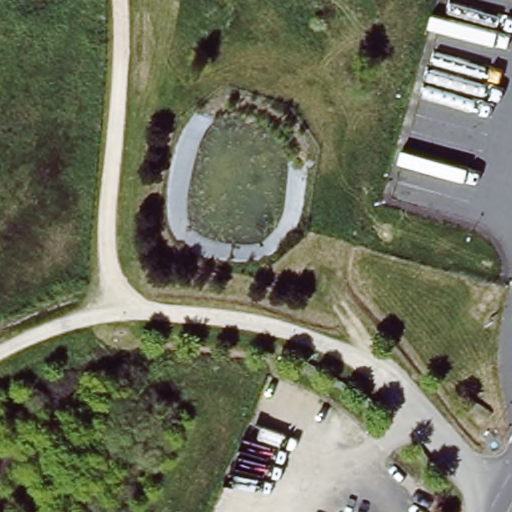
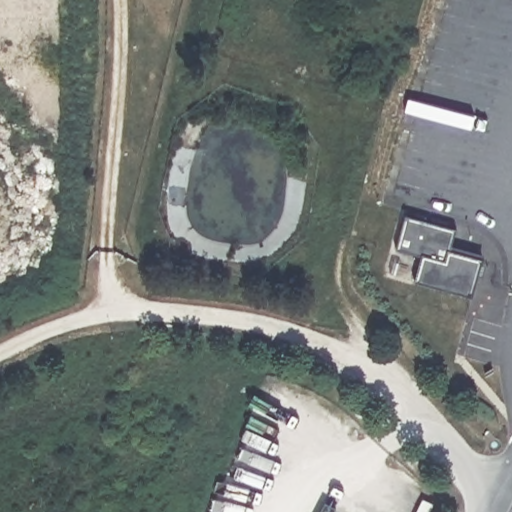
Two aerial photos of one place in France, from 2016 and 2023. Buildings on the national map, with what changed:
new [(410,221),(455,234),(450,254),(481,263),(471,300),(417,285),(425,257),(402,250),(410,221)]

